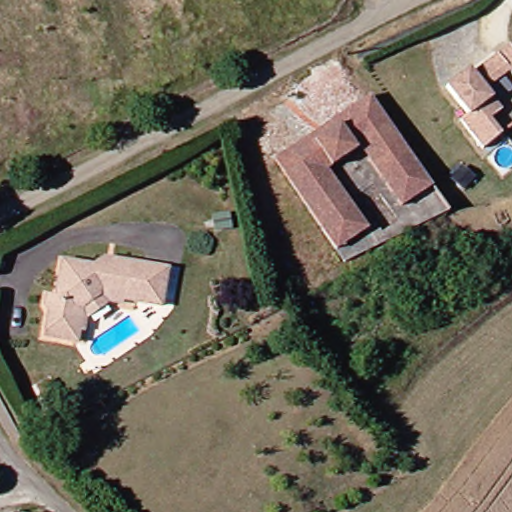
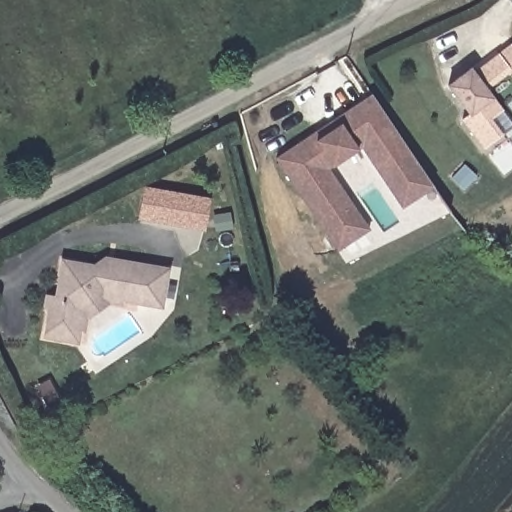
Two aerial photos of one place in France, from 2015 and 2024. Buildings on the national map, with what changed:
unchanged [(485,84),(502,106),(490,115),(502,131),(483,145),(461,115),(468,110),(447,82),(470,64),(475,69),(512,42),(512,70),(510,67),(485,84)]
unchanged [(275,154),(316,130),(317,136),(335,126),(331,119),(376,93),(436,183),(404,203),(365,143),(331,165),(370,229),(339,246),(275,154)]
unchanged [(470,179),(460,191),(449,180),(460,170),(470,179)]
new [(140,219),(145,185),(209,196),(202,230),(140,219)]
unchanged [(78,340),(45,333),(51,308),(42,306),(45,295),(55,293),(64,257),(99,264),(101,254),(146,262),(169,267),(160,306),(115,296),(84,315),(78,340)]

